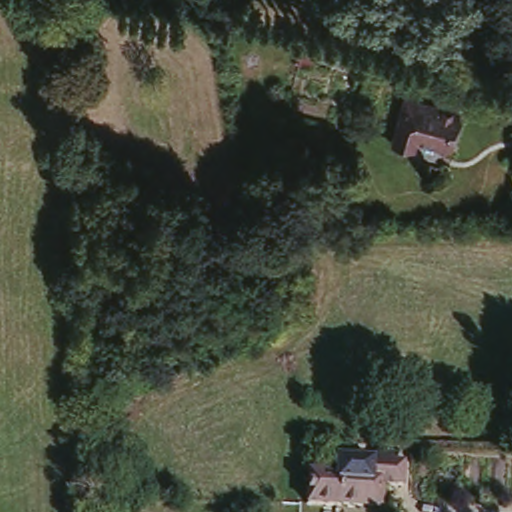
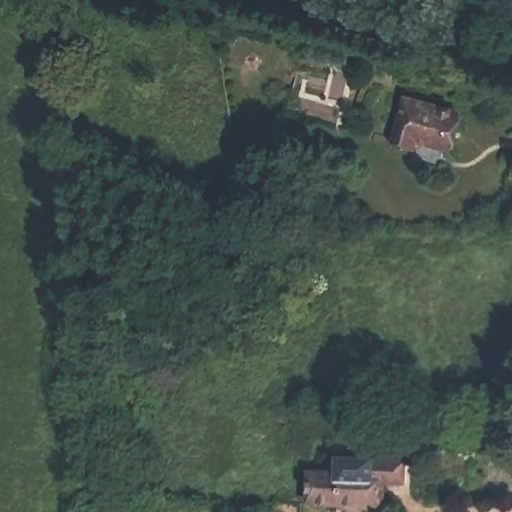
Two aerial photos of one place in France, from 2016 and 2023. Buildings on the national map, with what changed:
unchanged [(304,48),(315,51),(311,68),(299,64),(304,48)]
unchanged [(401,98),(452,112),(442,149),(410,140),(407,150),(389,144),(401,98)]
unchanged [(384,488),(383,512),(364,512),(308,510),(308,474),(326,474),(325,458),(394,459),(394,467),(405,467),(405,488),(384,488)]

